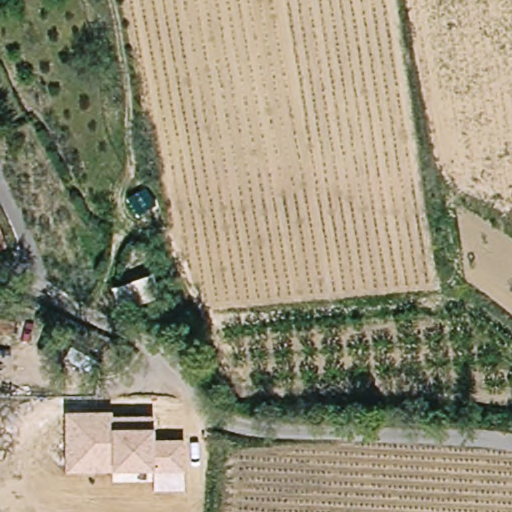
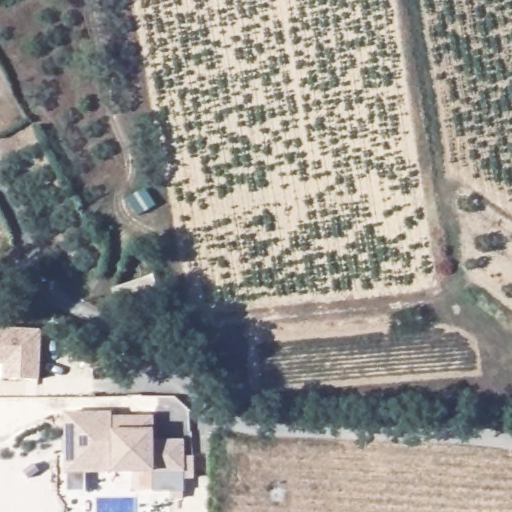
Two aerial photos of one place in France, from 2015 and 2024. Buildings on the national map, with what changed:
new [(40,380),(3,380),(5,364),(0,364),(0,328),(42,330),(40,380)]
unchanged [(155,429),(155,441),(183,441),(185,491),(155,492),(154,471),(112,470),(64,471),(65,413),(112,412),(112,418),(152,417),(155,429)]

